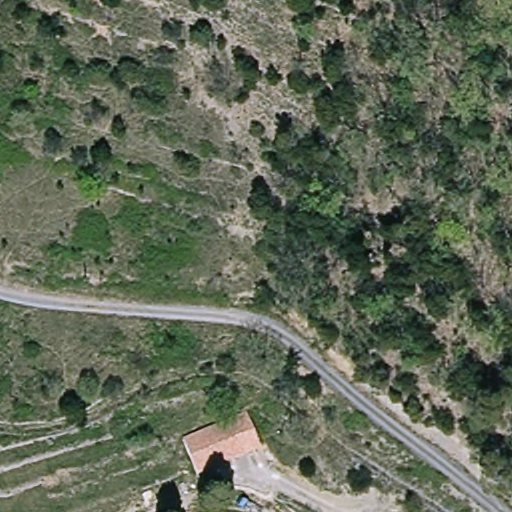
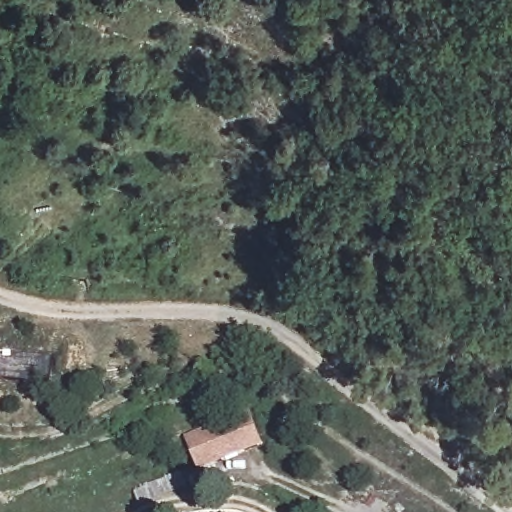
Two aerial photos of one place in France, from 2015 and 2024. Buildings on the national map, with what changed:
unchanged [(263,444),(198,472),(184,435),(248,406),(263,444)]

